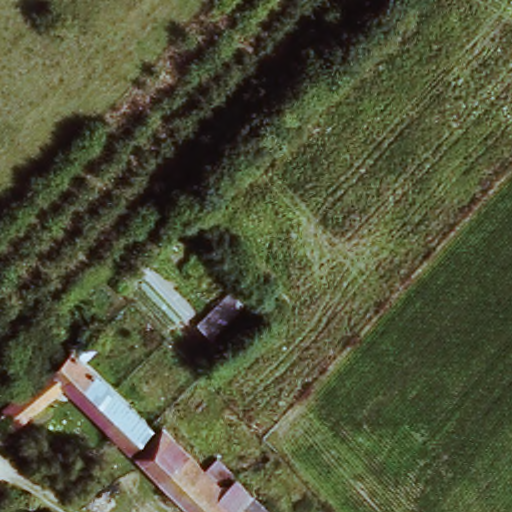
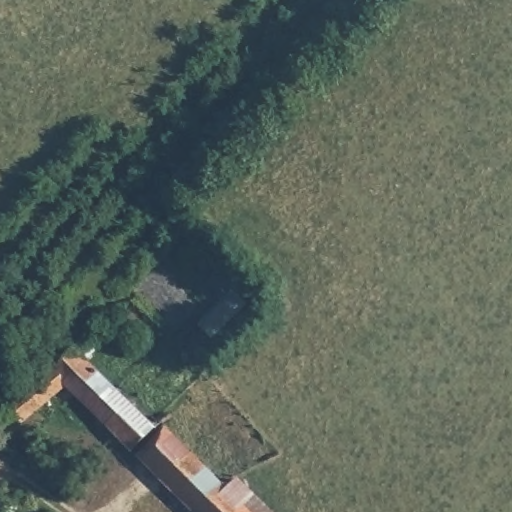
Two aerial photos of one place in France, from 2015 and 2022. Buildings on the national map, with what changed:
unchanged [(78,347),(174,440),(145,466),(62,390),(15,428),(0,410),(78,347)]
unchanged [(148,469),(145,466),(174,440),(177,437),(225,489),(244,473),(263,494),(245,511),(245,512),(188,512),(148,469)]

